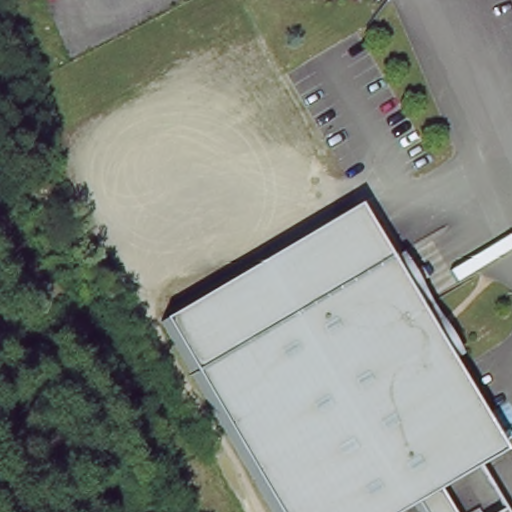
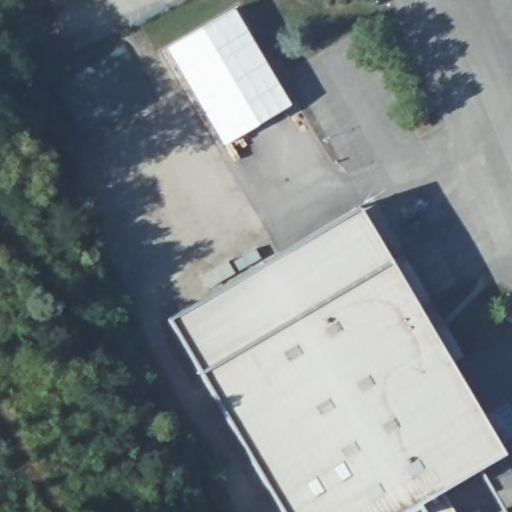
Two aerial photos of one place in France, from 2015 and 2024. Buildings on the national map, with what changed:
unchanged [(58,2),(57,0),(64,0),(58,2)]
new [(231,6),(290,104),(223,145),(165,47),(231,6)]
unchanged [(407,320),(410,324),(417,329),(423,331),(432,336),(437,342),(501,455),(438,491),(450,512),(419,512),(415,505),(404,512),(279,512),(168,318),(360,208),(389,260),(407,320)]
unchanged [(501,512),(500,512),(501,511),(501,512)]

